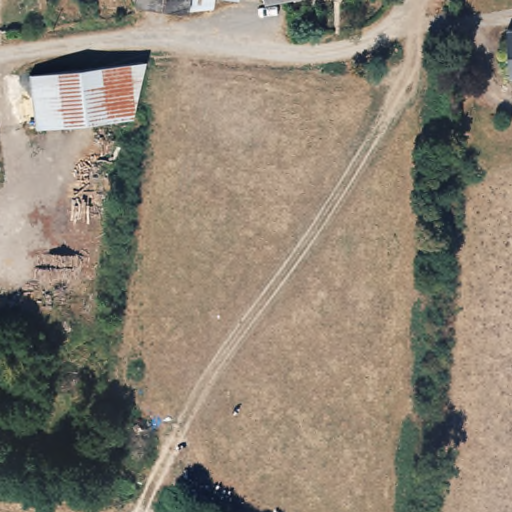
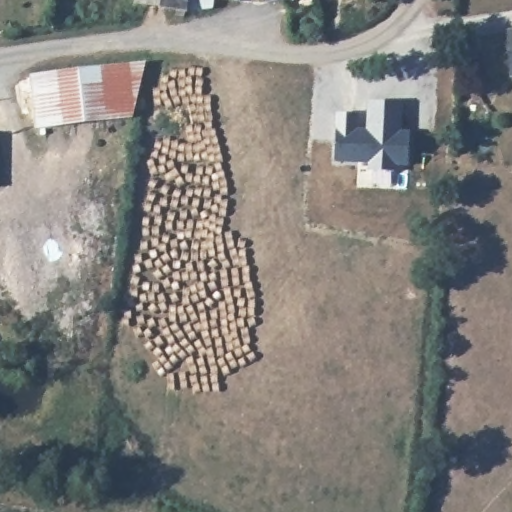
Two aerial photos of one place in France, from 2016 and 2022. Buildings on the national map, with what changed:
unchanged [(187,10),(137,3),(138,0),(188,0),(187,10)]
unchanged [(215,10),(187,13),(187,10),(188,0),(215,0),(215,10)]
unchanged [(288,1),(268,4),(267,0),(291,0),(288,1)]
unchanged [(512,80),(507,80),(505,33),(512,33),(512,80)]
unchanged [(146,66),(140,121),(139,121),(16,134),(11,97),(11,82),(146,66)]
new [(335,112),(358,114),(357,127),(365,127),(367,100),(401,102),(400,130),(411,131),(410,166),(396,165),(396,171),(366,170),(366,163),(333,162),(335,112)]

